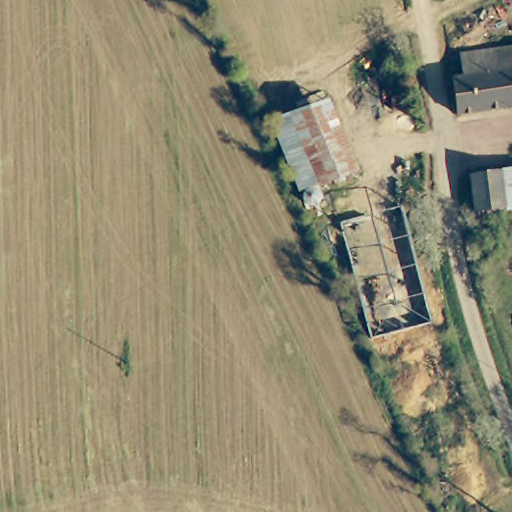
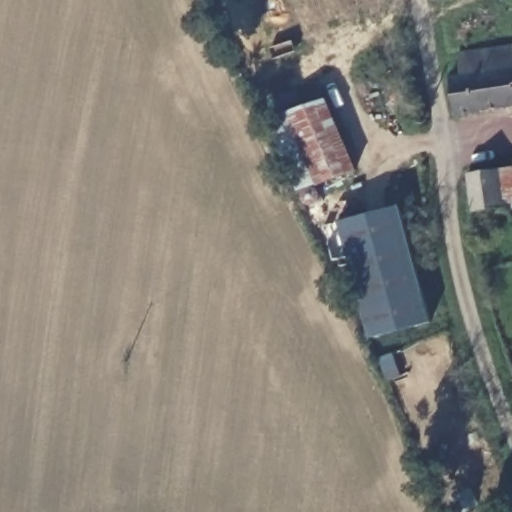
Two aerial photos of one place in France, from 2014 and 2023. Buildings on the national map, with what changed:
unchanged [(460,53),(512,46),(512,105),(457,112),(452,78),(462,76),(460,53)]
unchanged [(328,98),(358,171),(296,192),(271,121),(328,98)]
unchanged [(472,209),(468,173),(496,170),(497,178),(512,176),(512,204),(501,206),(472,209)]
new [(402,207),(432,323),(371,339),(341,223),(402,207)]

